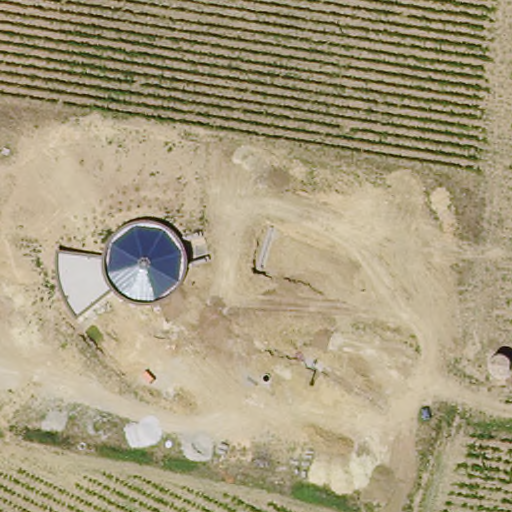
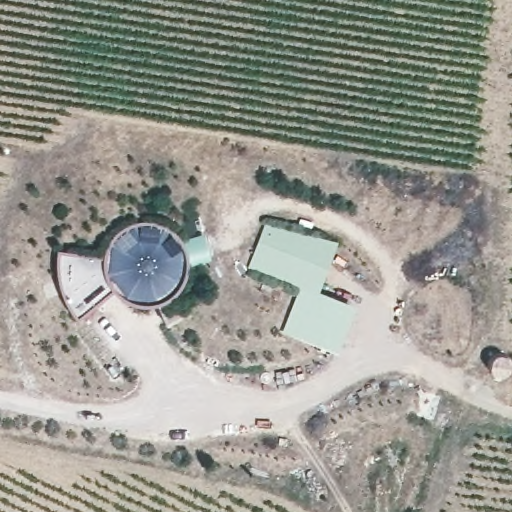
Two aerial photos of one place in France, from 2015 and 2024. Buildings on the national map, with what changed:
unchanged [(149,219),(160,221),(171,227),(182,237),(188,249),(189,263),(186,280),(177,293),(165,300),(151,304),(139,304),(125,300),(113,292),(76,320),(66,302),(60,289),(57,267),(58,250),(104,255),(105,250),(109,242),(115,234),(123,228),(131,223),(139,221),(149,219)]
new [(338,240),(319,293),(248,267),(265,222),(338,240)]
new [(358,307),(340,352),(283,329),(300,286),(319,293),(319,292),(358,307)]

